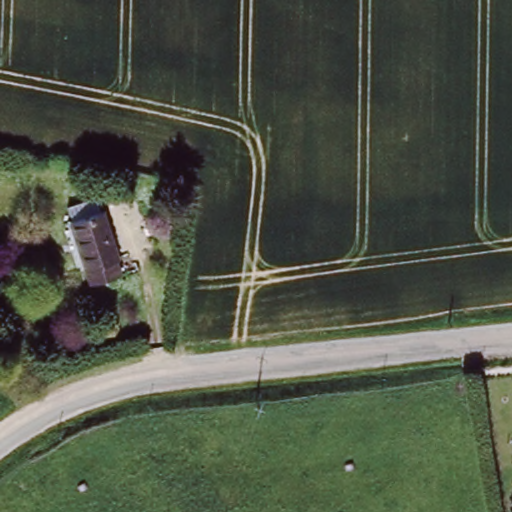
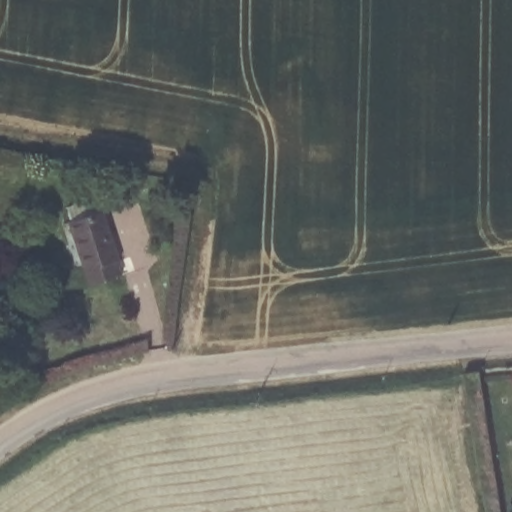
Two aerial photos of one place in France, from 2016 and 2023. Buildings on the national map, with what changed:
unchanged [(105,212),(119,260),(117,261),(120,275),(90,285),(71,222),(105,212)]

